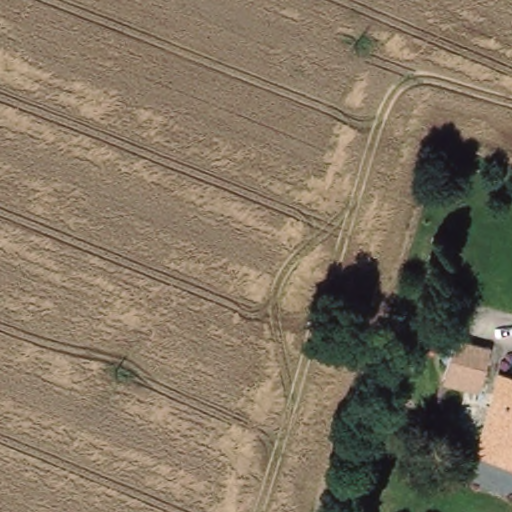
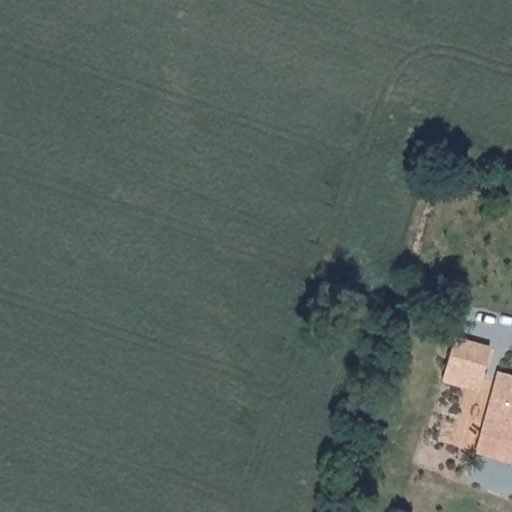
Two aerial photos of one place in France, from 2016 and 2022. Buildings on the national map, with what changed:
unchanged [(426,366),(427,355),(427,353),(430,321),(441,322),(468,324),(467,334),(465,357),(463,370),(426,366)]
unchanged [(495,368),(512,371),(512,458),(476,450),(495,368)]

